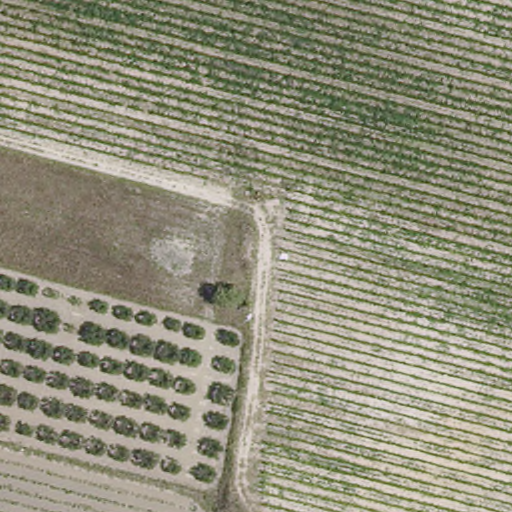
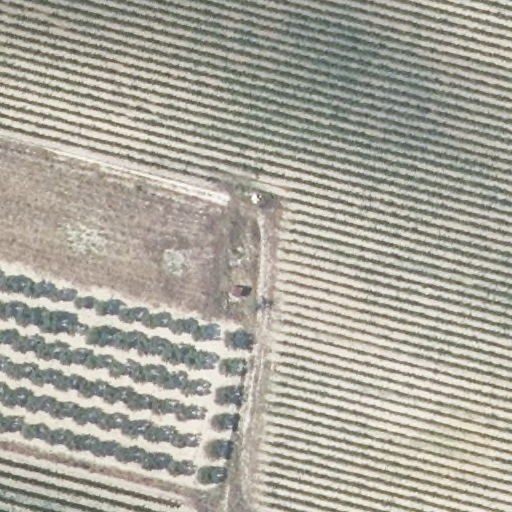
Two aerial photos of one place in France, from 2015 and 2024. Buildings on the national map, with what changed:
unchanged [(248,288),(243,305),(229,300),(233,282),(248,288)]

